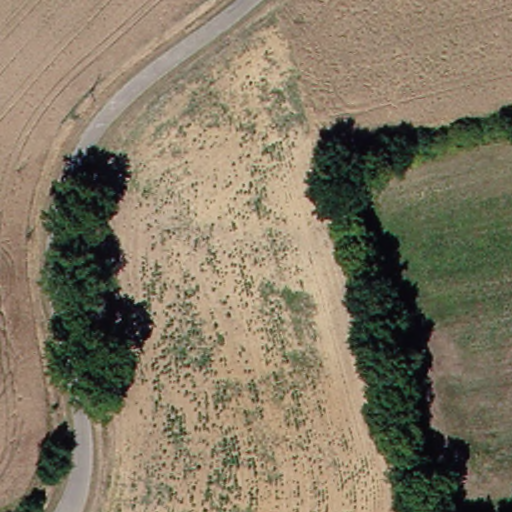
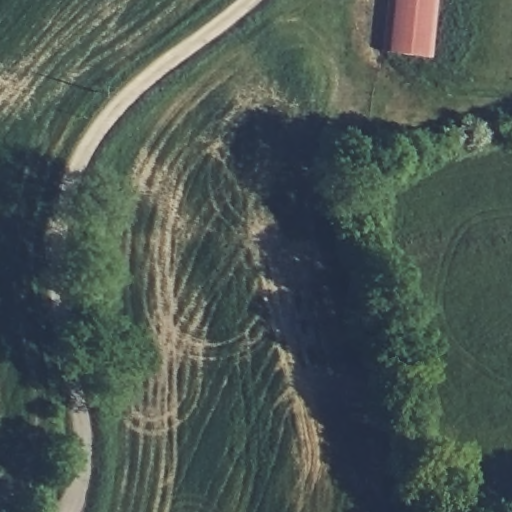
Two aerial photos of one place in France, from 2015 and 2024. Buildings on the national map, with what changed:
new [(387,0),(436,0),(429,58),(381,52),(387,0)]

